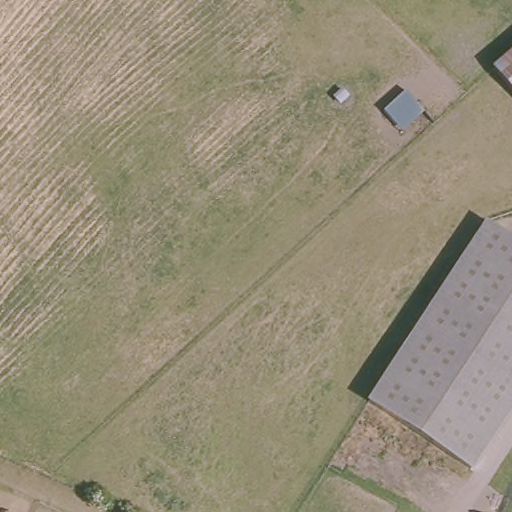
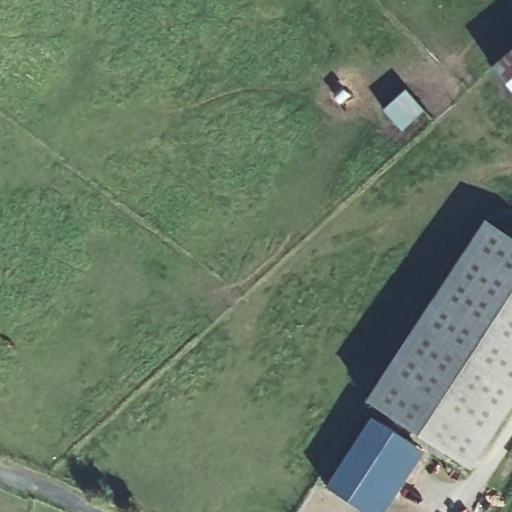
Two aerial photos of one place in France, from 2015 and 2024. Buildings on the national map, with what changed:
unchanged [(512,47),(512,87),(492,65),(505,53),(512,47)]
unchanged [(476,231),(512,251),(512,408),(476,472),(371,409),(476,231)]
new [(371,416),(425,452),(385,512),(367,512),(327,485),(371,416)]

